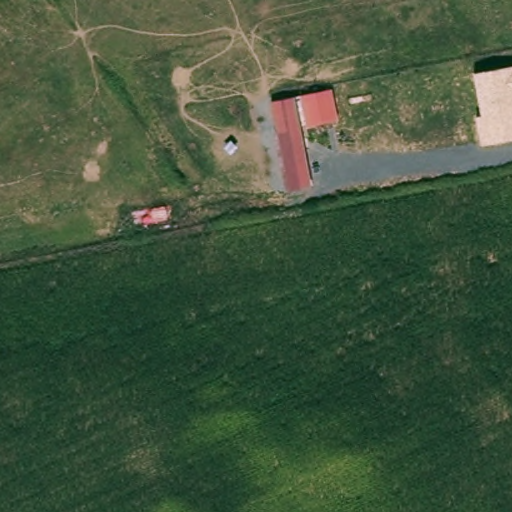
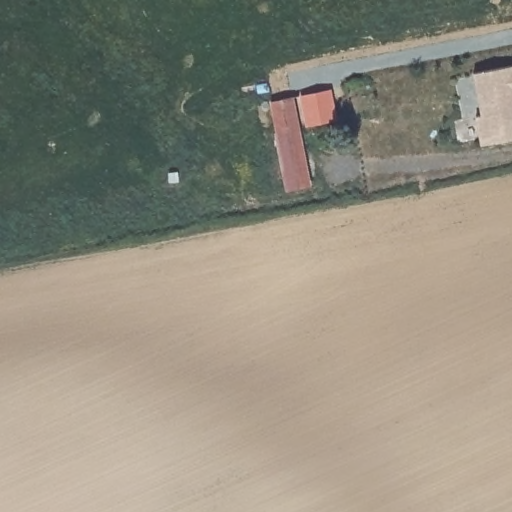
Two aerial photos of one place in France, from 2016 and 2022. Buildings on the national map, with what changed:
unchanged [(476,116),(481,115),(473,74),(512,66),(512,140),(481,145),(476,116)]
unchanged [(332,89),(338,119),(300,128),(311,186),(287,190),(271,101),(332,89)]

